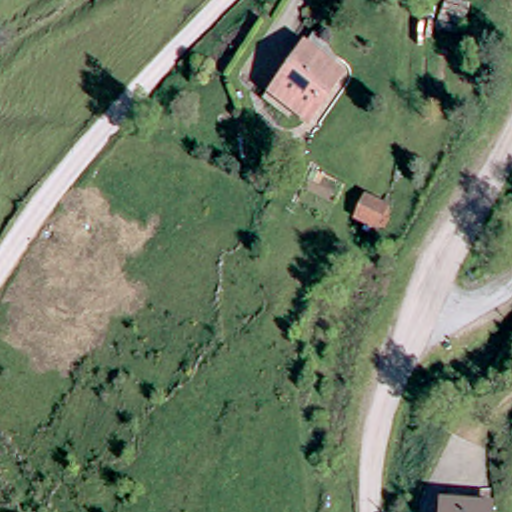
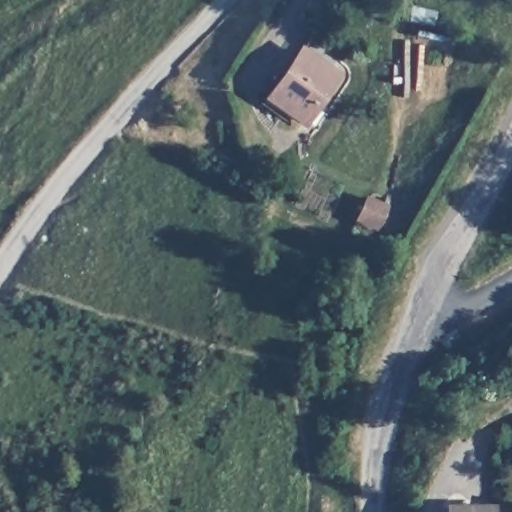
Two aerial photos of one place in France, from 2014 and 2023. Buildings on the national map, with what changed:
unchanged [(345,65),(338,79),(343,84),(307,136),(273,114),(317,48),(345,65)]
unchanged [(376,236),(357,229),(365,209),(384,216),(376,236)]
unchanged [(501,501),(500,512),(453,512),(453,499),(501,501)]

